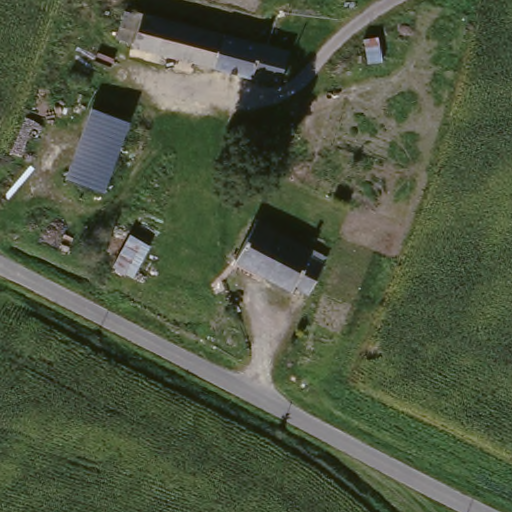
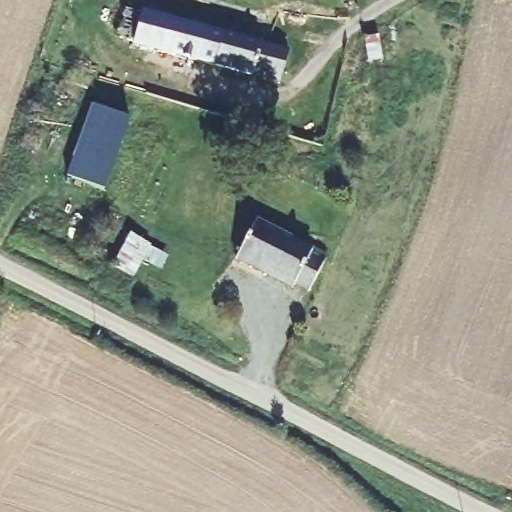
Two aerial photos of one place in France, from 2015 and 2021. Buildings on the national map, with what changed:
unchanged [(257,75),(132,39),(117,35),(128,2),(141,6),(291,48),(285,78),(258,70),(257,75)]
unchanged [(378,39),(382,60),(367,63),(363,41),(378,39)]
unchanged [(104,190),(66,176),(92,106),(132,119),(104,190)]
unchanged [(313,285),(299,277),(297,281),(240,249),(258,215),(327,252),(313,285)]

